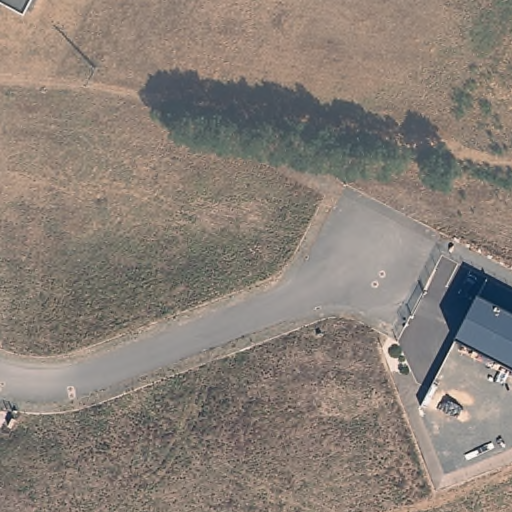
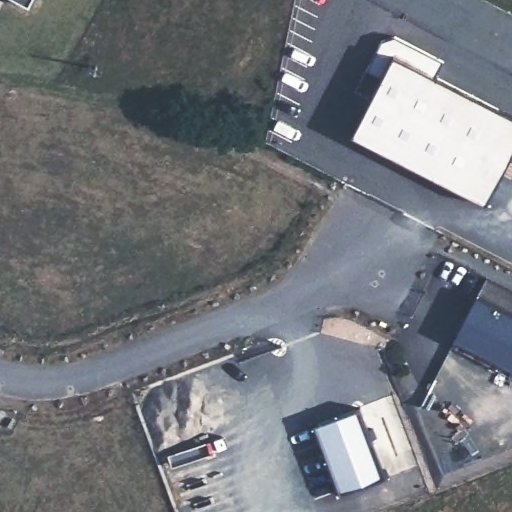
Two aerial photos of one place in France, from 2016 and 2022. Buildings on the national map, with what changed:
unchanged [(30,7),(16,0),(33,0),(30,7)]
new [(370,67),(380,40),(395,35),(443,59),(435,76),(512,116),(512,149),(485,202),(352,132),(383,74),(370,67)]
unchanged [(478,295),(512,313),(512,368),(456,339),(478,295)]
unchanged [(339,494),(314,426),(359,409),(386,477),(339,494)]

